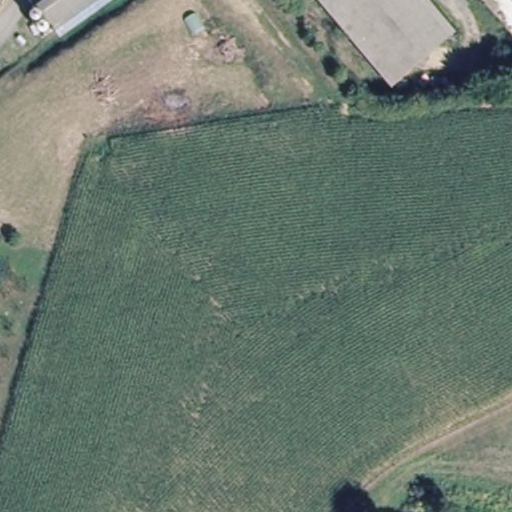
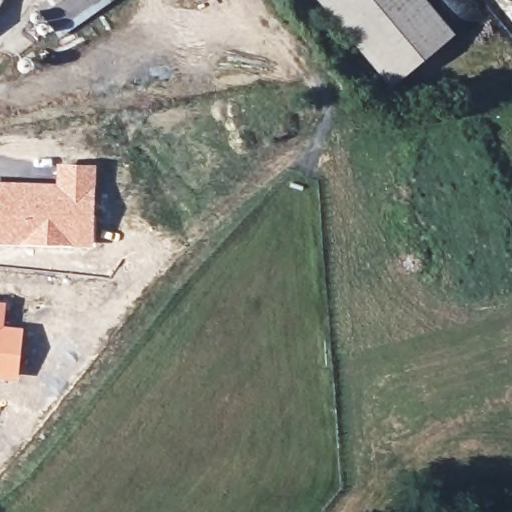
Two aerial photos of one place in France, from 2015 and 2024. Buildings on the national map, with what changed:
unchanged [(43,8),(53,0),(96,0),(59,28),(43,8)]
unchanged [(377,96),(308,0),(410,0),(444,46),(377,96)]
new [(56,182),(56,163),(97,164),(93,248),(0,244),(0,181),(56,182)]
new [(6,302),(4,325),(22,328),(17,382),(0,380),(0,301),(6,302)]

